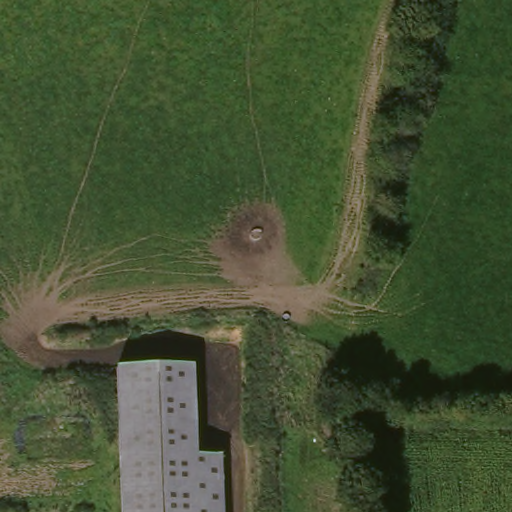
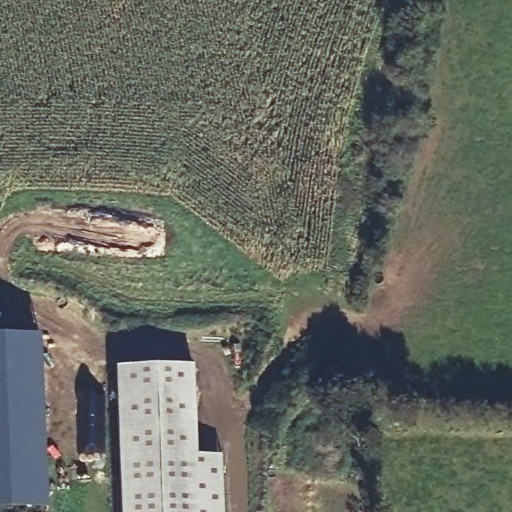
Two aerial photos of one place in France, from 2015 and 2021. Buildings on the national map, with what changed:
new [(52,512),(0,512),(0,335),(47,334),(52,512)]
unchanged [(116,366),(181,363),(184,357),(199,356),(196,453),(224,453),(226,512),(120,512),(116,366)]

